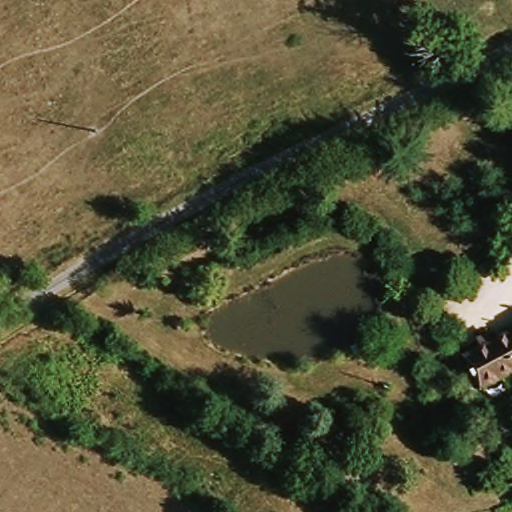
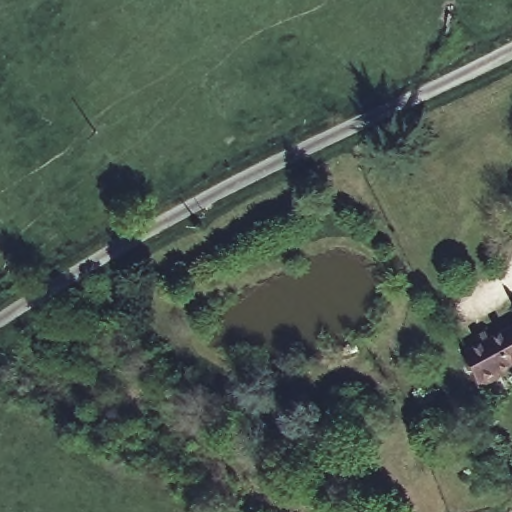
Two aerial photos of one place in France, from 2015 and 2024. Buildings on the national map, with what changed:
unchanged [(475,346),(512,327),(512,369),(492,380),(475,346)]

